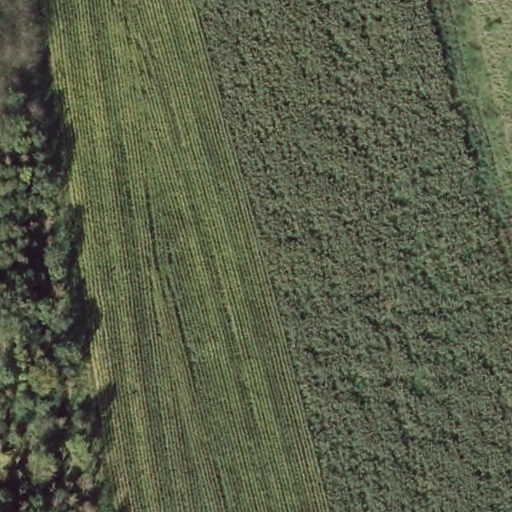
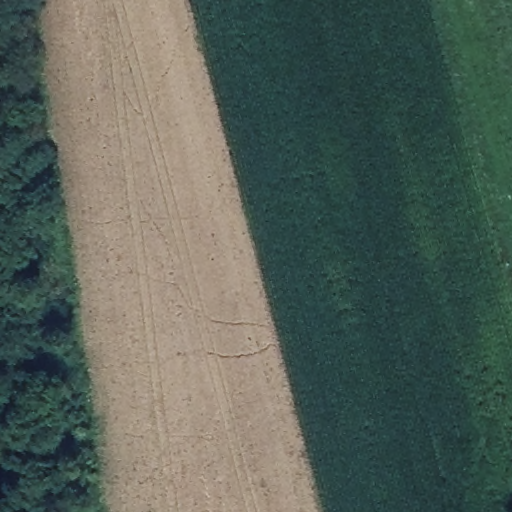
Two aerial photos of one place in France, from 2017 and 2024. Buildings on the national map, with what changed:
[]

